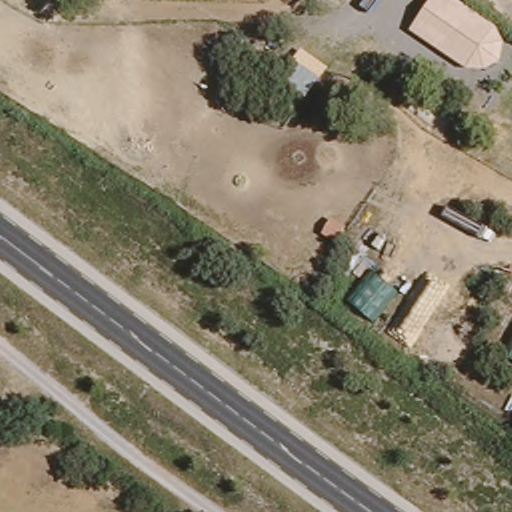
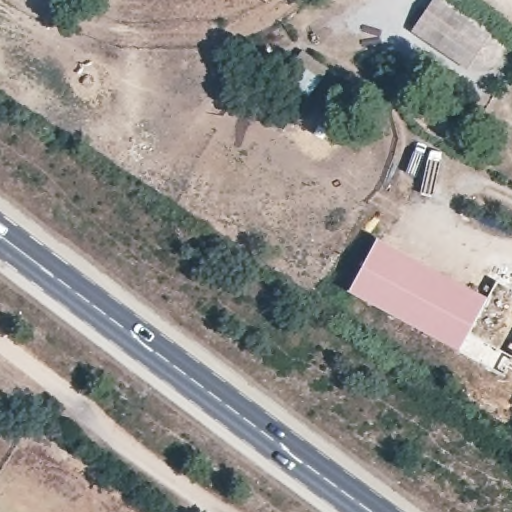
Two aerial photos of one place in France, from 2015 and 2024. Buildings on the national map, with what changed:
unchanged [(492,21),(499,29),(504,41),(504,55),(498,68),(486,74),(474,75),(460,69),(409,33),(429,0),(455,0),(492,21)]
unchanged [(295,55),(305,61),(314,51),(333,64),(309,98),(280,77),(295,55)]
new [(378,237),(488,297),(498,279),(512,287),(512,359),(504,374),(458,351),(348,290),(378,237)]
new [(512,329),(512,364),(497,355),(512,329)]

